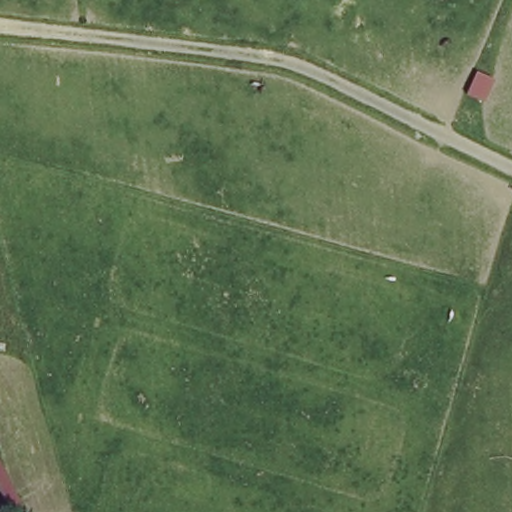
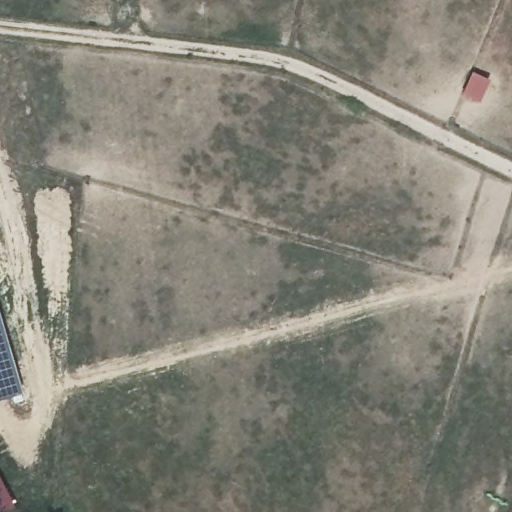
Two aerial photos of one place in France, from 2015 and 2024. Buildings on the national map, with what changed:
unchanged [(491,80),(481,103),(461,95),(472,71),(491,80)]
new [(25,394),(0,401),(0,307),(25,394)]
new [(18,508),(11,512),(0,512),(0,474),(18,508)]

